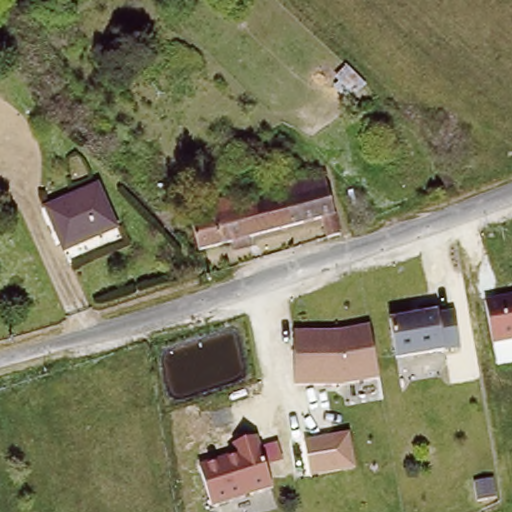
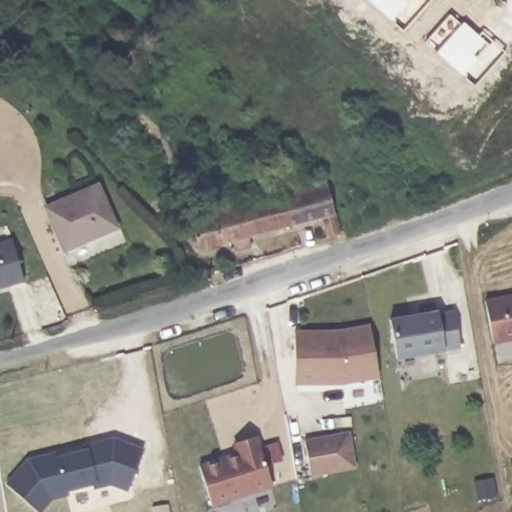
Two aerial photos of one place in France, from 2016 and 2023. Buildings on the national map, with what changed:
unchanged [(214,215),(213,210),(224,206),(222,199),(241,193),(245,206),(290,192),(286,178),(302,174),(307,187),(314,185),(322,214),(248,235),(251,244),(234,250),(230,240),(199,250),(191,222),(214,215)]
unchanged [(46,202),(99,179),(117,223),(65,245),(46,202)]
unchanged [(335,210),(340,229),(341,233),(328,238),(327,234),(322,214),(335,210)]
new [(10,239),(23,280),(0,288),(0,243),(10,239)]
unchanged [(489,345),(481,300),(512,294),(512,341),(489,345)]
unchanged [(455,309),(458,346),(395,362),(389,317),(455,309)]
unchanged [(329,329),(369,323),(380,378),(338,386),(293,385),(295,328),(329,329)]
unchanged [(306,440),(350,432),(356,467),(311,475),(306,440)]
unchanged [(234,454),(232,439),(256,433),(272,491),(209,510),(197,463),(234,454)]
new [(27,457),(57,450),(58,454),(82,448),(82,444),(113,436),(143,449),(128,491),(110,484),(94,488),(92,485),(67,490),(68,494),(52,498),(40,512),(38,512),(4,482),(27,457)]
new [(493,480),(494,495),(479,496),(478,481),(493,480)]

